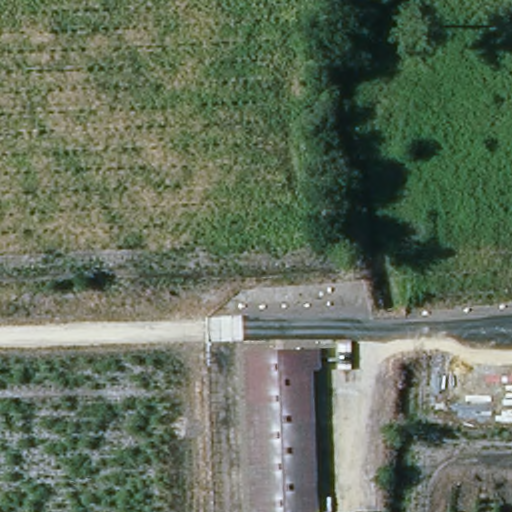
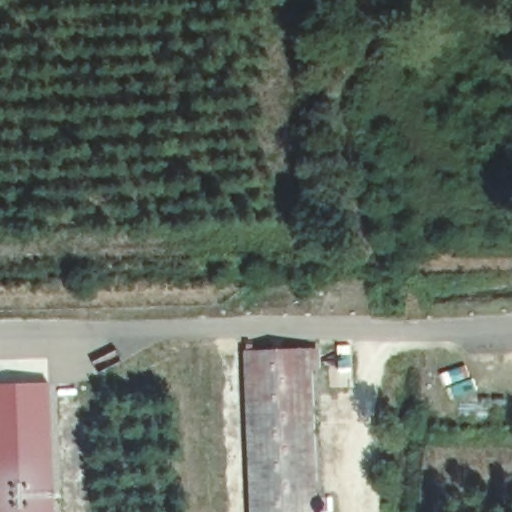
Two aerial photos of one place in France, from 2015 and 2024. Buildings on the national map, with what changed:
unchanged [(252,512),(247,351),(316,351),(318,512),(252,512)]
new [(55,512),(0,512),(0,386),(50,384),(55,512)]

